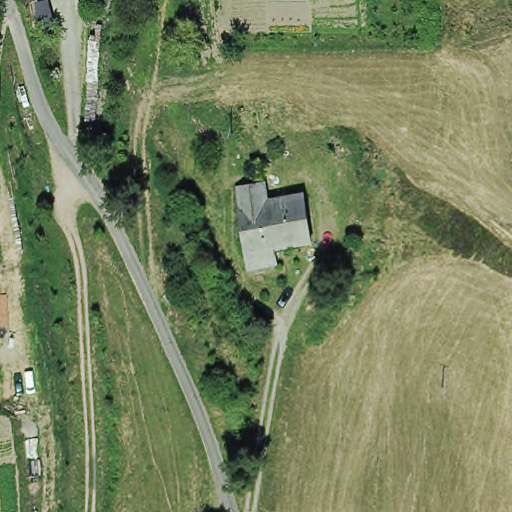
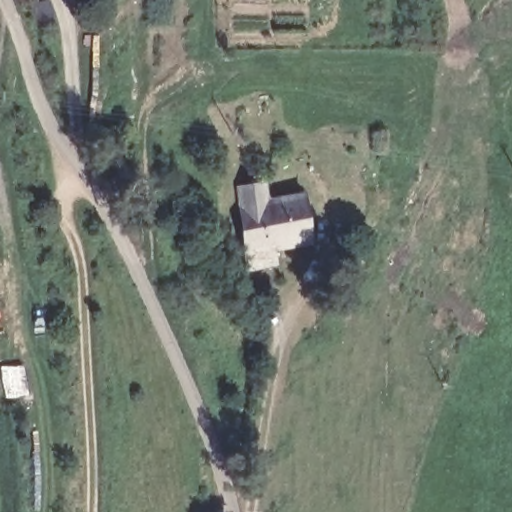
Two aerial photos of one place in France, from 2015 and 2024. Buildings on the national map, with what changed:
unchanged [(166,218),(157,206),(141,184),(159,172),(183,203),(185,206),(166,218)]
unchanged [(244,260),(243,246),(239,204),(239,197),(238,187),(237,178),(264,176),(266,195),(281,194),(285,242),(274,243),(276,257),(244,260)]
unchanged [(281,194),(307,191),(311,240),(285,242),(281,194)]

